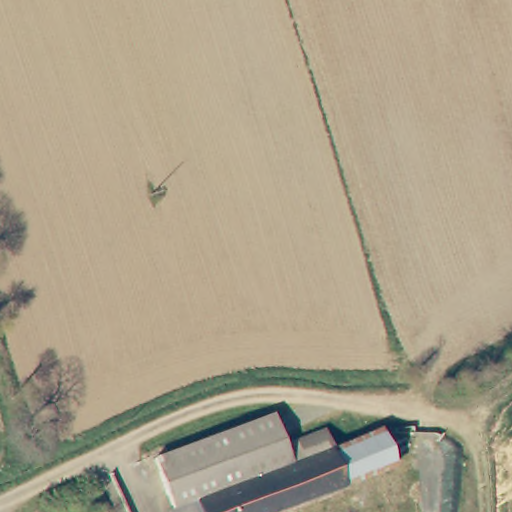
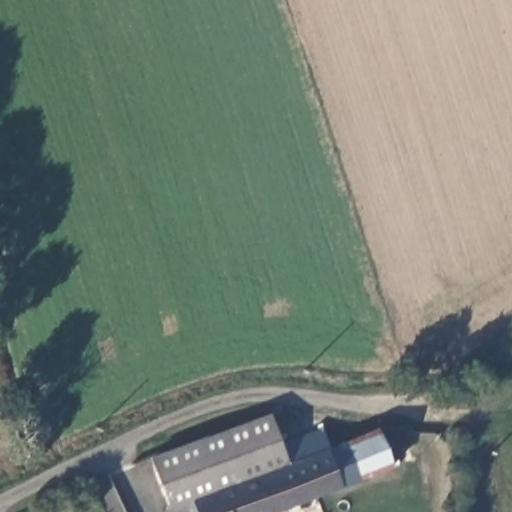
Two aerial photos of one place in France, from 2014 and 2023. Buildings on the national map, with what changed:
unchanged [(392,471),(285,509),(277,512),(166,512),(164,507),(168,506),(151,457),(266,416),(276,445),(281,443),(319,430),(325,448),(377,429),(392,471)]

